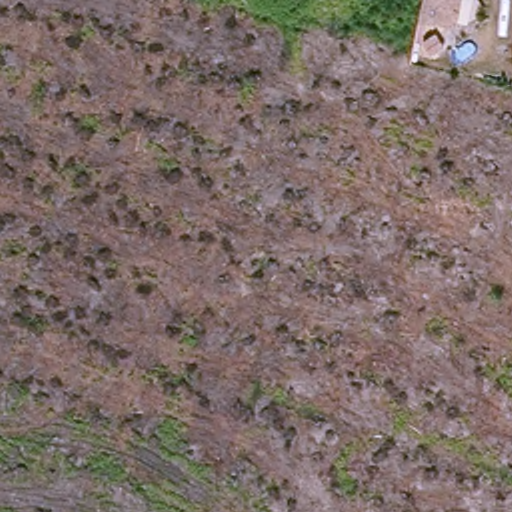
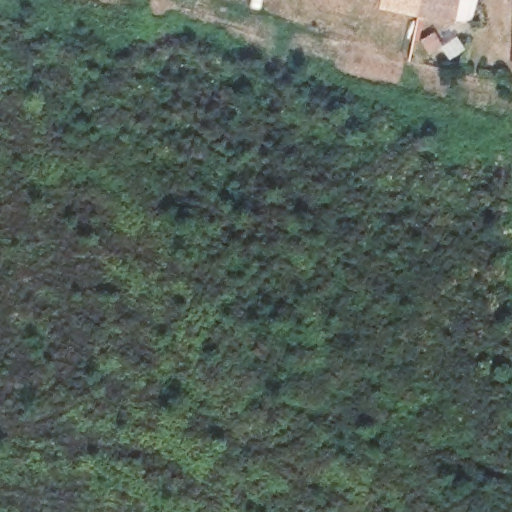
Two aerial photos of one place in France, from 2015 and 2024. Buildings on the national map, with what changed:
new [(417,0),(413,15),(382,9),(384,0),(417,0)]
unchanged [(413,15),(417,0),(453,0),(447,24),(413,15)]

